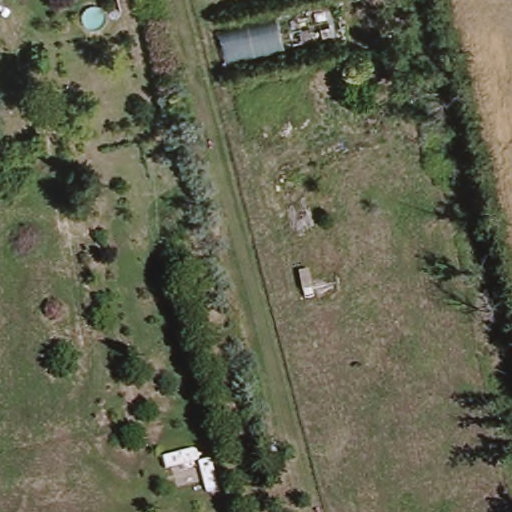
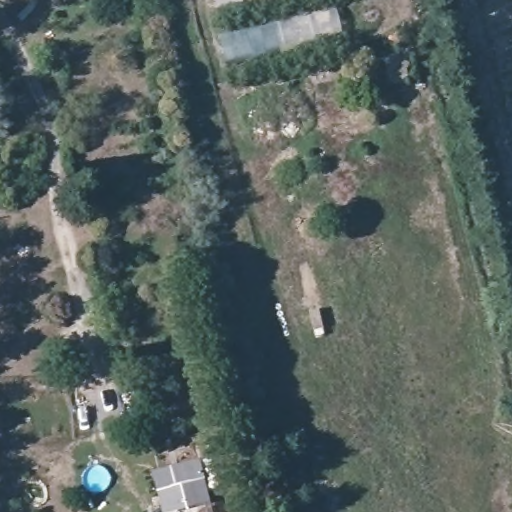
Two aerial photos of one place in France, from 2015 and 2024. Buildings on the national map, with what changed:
unchanged [(216,32),(337,5),(347,45),(229,70),(216,32)]
new [(198,507),(199,512),(163,512),(153,471),(201,460),(211,503),(198,507)]

